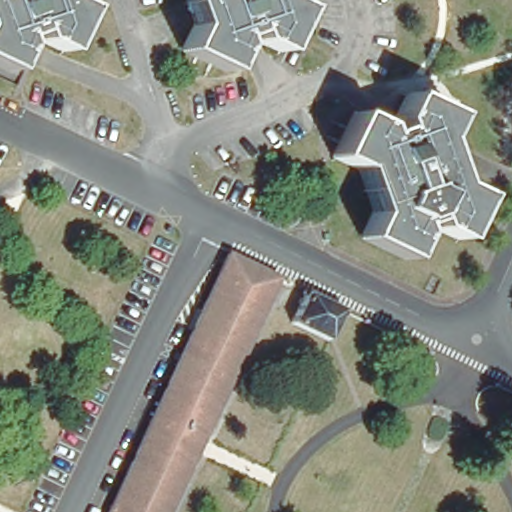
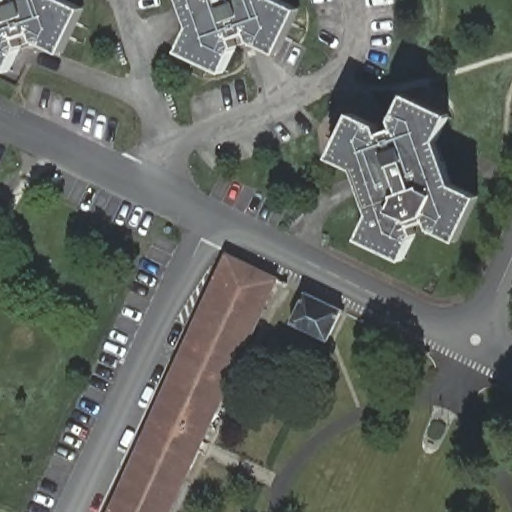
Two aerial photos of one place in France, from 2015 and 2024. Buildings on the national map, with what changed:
unchanged [(64,46),(36,41),(35,31),(18,33),(20,46),(19,46),(11,68),(0,64),(0,0),(74,0),(80,2),(64,46)]
unchanged [(277,51),(255,42),(252,30),(230,36),(232,45),(224,68),(177,51),(188,25),(181,0),(279,0),(296,6),(277,51)]
unchanged [(327,166),(351,116),(382,131),(385,139),(403,134),(399,120),(411,94),(451,113),(441,139),(454,186),(476,193),(457,239),(436,230),(432,218),(411,223),(413,232),(405,256),(358,238),(368,213),(359,179),(327,166)]
unchanged [(224,258),(272,280),(166,512),(105,512),(224,258)]
unchanged [(326,342),(290,326),(306,295),(344,313),(326,342)]

